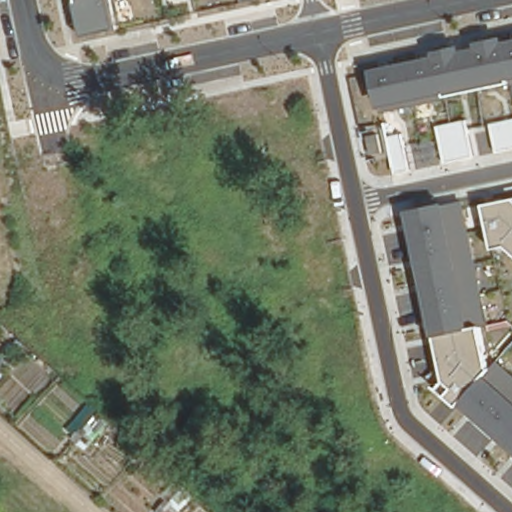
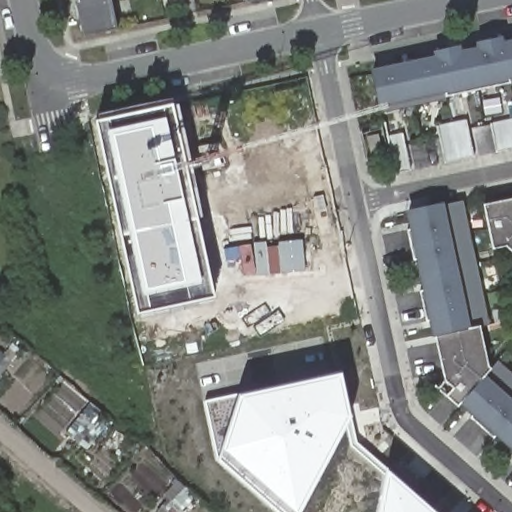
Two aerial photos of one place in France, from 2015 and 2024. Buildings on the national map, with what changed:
unchanged [(118,30),(85,39),(77,0),(112,0),(118,30)]
unchanged [(246,1),(246,0),(251,0),(246,1)]
unchanged [(379,110),(371,69),(432,56),(432,50),(459,45),(461,50),(476,47),(475,41),(504,35),(506,41),(512,40),(512,82),(379,110)]
new [(99,119),(98,112),(171,97),(172,102),(214,296),(136,313),(95,120),(99,119)]
unchanged [(498,155),(491,122),(512,118),(512,151),(498,155)]
unchanged [(445,165),(436,125),(466,120),(475,157),(445,165)]
unchanged [(395,176),(385,136),(404,134),(413,172),(395,176)]
unchanged [(507,246),(493,250),(482,202),(512,197),(512,251),(507,246)]
unchanged [(436,388),(443,380),(406,211),(444,203),(463,201),(489,324),(482,326),(493,369),(499,361),(512,373),(512,452),(436,388)]
new [(341,371),(350,411),(352,442),(386,467),(436,512),(280,512),(216,457),(204,397),(238,391),(341,371)]
unchanged [(83,451),(60,428),(87,400),(101,415),(90,427),(98,437),(83,451)]
unchanged [(153,512),(152,511),(165,497),(160,492),(177,476),(199,497),(186,512),(153,512)]

